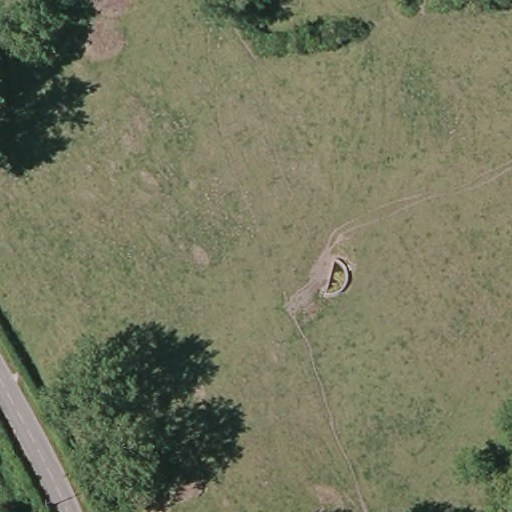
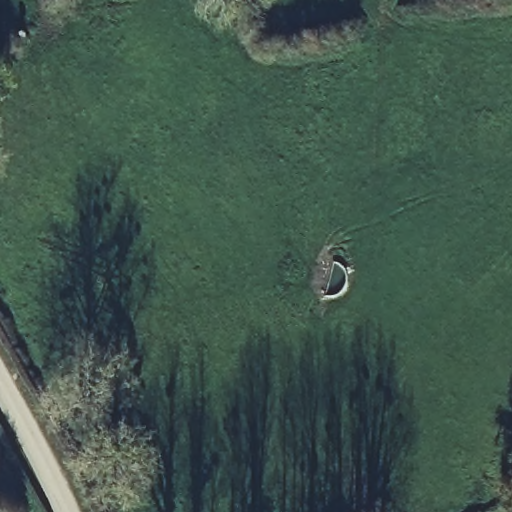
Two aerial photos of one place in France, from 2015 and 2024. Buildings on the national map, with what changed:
[]

